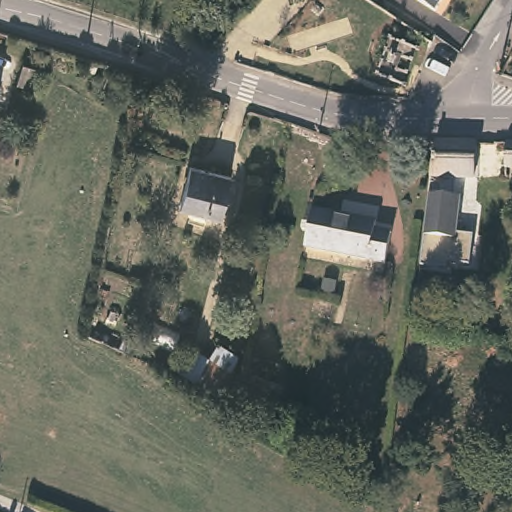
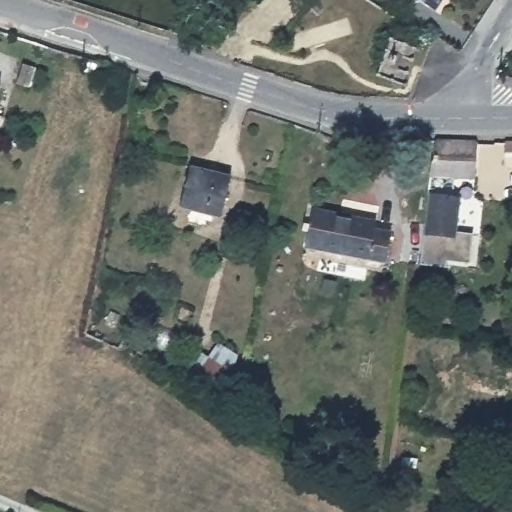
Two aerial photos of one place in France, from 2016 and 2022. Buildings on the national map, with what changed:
unchanged [(428,0),(439,0),(436,5),(428,0)]
unchanged [(417,49),(405,85),(381,78),(393,41),(417,49)]
unchanged [(478,135),(477,170),(435,171),(439,134),(478,135)]
unchanged [(505,136),(512,136),(512,170),(507,170),(505,136)]
unchanged [(231,168),(223,210),(183,202),(190,160),(231,168)]
unchanged [(453,197),(457,204),(453,232),(470,235),(466,265),(446,261),(445,268),(419,265),(428,194),(453,197)]
unchanged [(378,220),(378,225),(394,229),(390,259),(307,242),(313,206),(378,220)]
unchanged [(191,340),(208,350),(218,335),(251,360),(221,401),(173,363),(191,340)]

